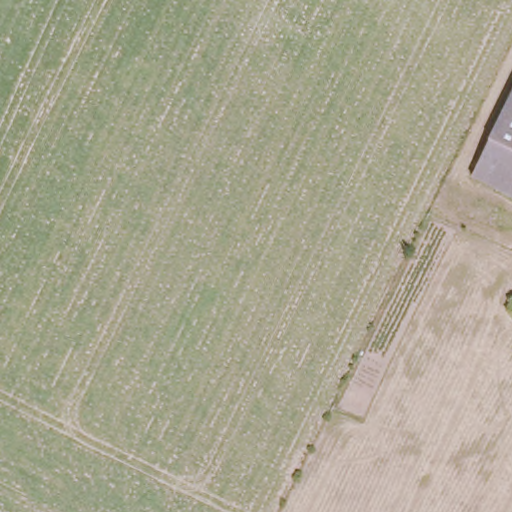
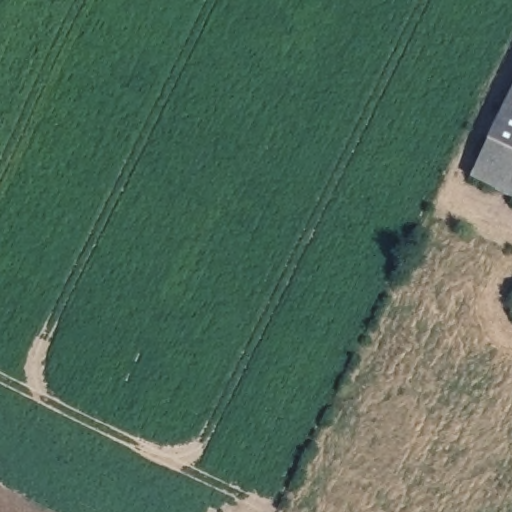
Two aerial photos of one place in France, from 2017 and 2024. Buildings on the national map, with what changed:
unchanged [(512,149),(493,140),(512,101),(512,149)]
unchanged [(512,194),(475,176),(493,140),(512,149),(512,194)]

